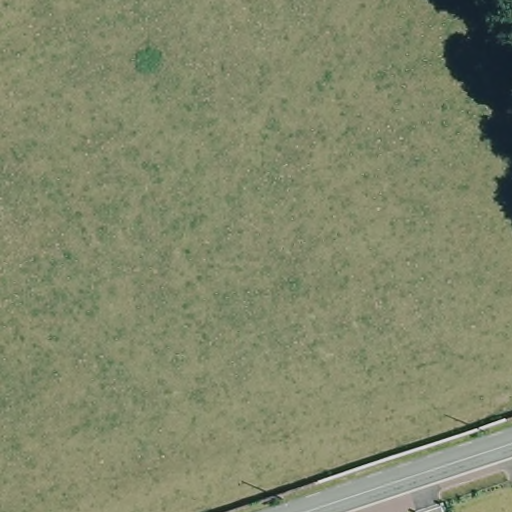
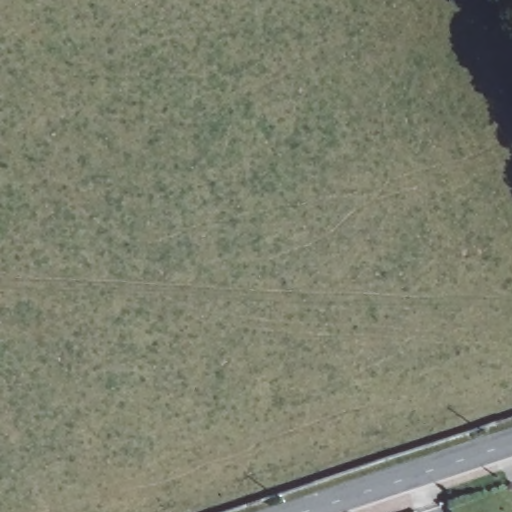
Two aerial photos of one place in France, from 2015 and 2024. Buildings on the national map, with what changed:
[]

